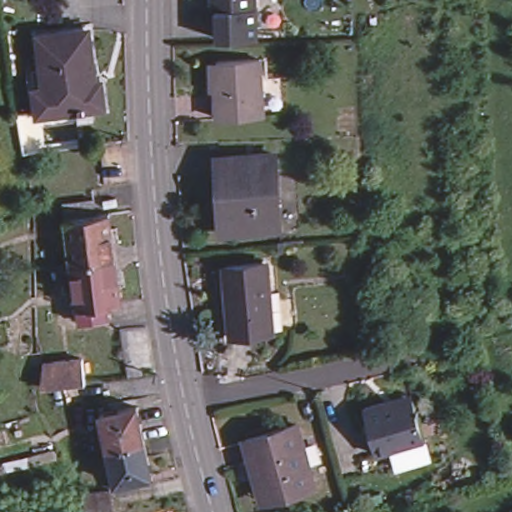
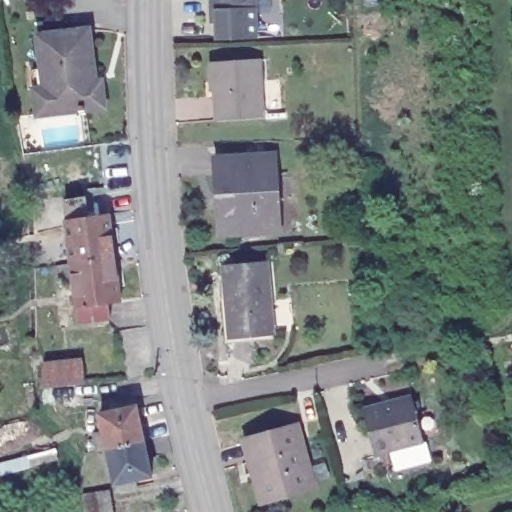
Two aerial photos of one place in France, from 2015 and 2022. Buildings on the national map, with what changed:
unchanged [(260,36),(220,37),(219,21),(213,21),(213,0),(258,0),(260,36)]
unchanged [(42,32),(90,25),(93,51),(45,56),(42,32)]
unchanged [(45,56),(93,51),(97,77),(102,76),(106,103),(89,105),(90,109),(45,114),(45,110),(42,110),(38,85),(48,84),(45,56)]
unchanged [(263,114),(217,117),(215,88),(217,86),(216,61),(260,59),(263,114)]
unchanged [(276,231),(218,235),(217,213),(220,211),(218,160),(272,157),(276,231)]
unchanged [(57,215),(87,209),(90,224),(102,221),(108,265),(64,271),(58,229),(57,215)]
unchanged [(274,331),(232,335),(227,265),(268,262),(274,331)]
unchanged [(64,271),(108,265),(114,307),(100,310),(102,325),(72,329),(70,315),(64,271)]
unchanged [(44,363),(82,357),(86,380),(42,385),(44,363)]
unchanged [(395,465),(390,447),(374,451),(362,405),(383,399),(410,391),(412,397),(422,440),(426,457),(395,465)]
unchanged [(103,410),(138,402),(145,437),(110,445),(103,410)]
unchanged [(243,440),(293,426),(310,488),(268,500),(260,501),(250,463),(243,440)]
unchanged [(110,445),(145,437),(153,472),(117,480),(110,445)]
unchanged [(108,494),(112,512),(91,512),(88,499),(108,494)]

